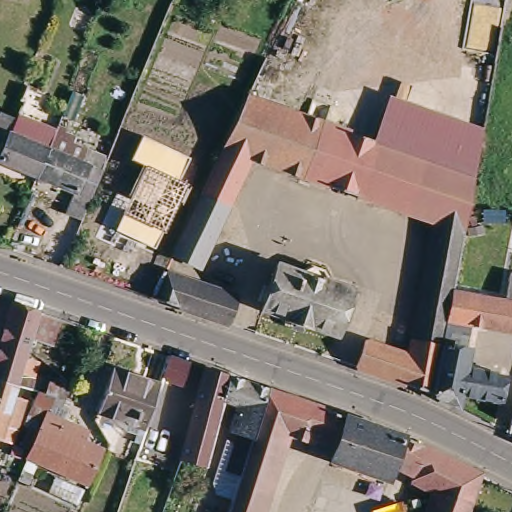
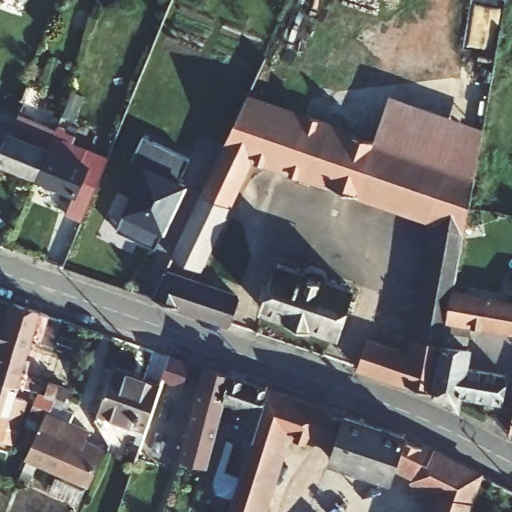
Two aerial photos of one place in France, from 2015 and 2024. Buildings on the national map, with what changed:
unchanged [(0,160),(0,115),(3,108),(15,113),(19,115),(25,100),(23,100),(30,84),(43,90),(37,106),(34,106),(27,122),(45,130),(48,125),(56,128),(37,176),(0,160)]
unchanged [(252,149),(223,139),(245,90),(378,136),(477,169),(467,223),(435,212),(252,149)]
unchanged [(484,129),(477,169),(378,136),(390,100),(484,129)]
unchanged [(56,128),(57,124),(67,128),(65,133),(75,137),(67,156),(103,172),(82,221),(65,214),(75,192),(37,176),(56,128)]
unchanged [(190,157),(180,180),(191,186),(183,204),(178,202),(165,233),(161,231),(155,247),(117,230),(143,164),(133,158),(143,136),(190,157)]
unchanged [(201,190),(223,139),(252,149),(228,202),(201,190)]
unchanged [(201,190),(228,202),(202,263),(174,251),(201,190)]
unchanged [(467,223),(455,283),(449,311),(448,318),(416,312),(435,212),(467,223)]
unchanged [(304,275),(305,272),(317,269),(322,271),(328,278),(327,283),(350,291),(335,337),(310,328),(310,331),(287,323),(287,319),(263,311),(278,266),(304,275)]
unchanged [(162,293),(152,289),(160,269),(171,273),(240,298),(231,326),(158,301),(162,293)]
unchanged [(512,297),(512,326),(449,311),(455,283),(512,297)]
unchanged [(55,342),(35,337),(25,370),(21,384),(0,377),(0,352),(15,300),(43,310),(62,316),(55,342)]
unchanged [(447,323),(457,326),(455,332),(445,330),(444,337),(433,392),(355,365),(365,338),(408,352),(416,312),(448,318),(447,323)]
unchanged [(498,393),(460,385),(458,394),(457,404),(433,392),(444,337),(468,342),(465,361),(503,369),(498,393)]
unchanged [(183,390),(177,388),(165,383),(168,373),(173,359),(192,365),(183,390)]
unchanged [(232,374),(227,397),(209,465),(183,459),(207,366),(232,374)]
unchanged [(150,429),(98,413),(112,369),(165,385),(150,429)]
unchanged [(231,450),(238,429),(231,427),(239,403),(227,397),(232,374),(271,388),(269,393),(248,456),(231,450)]
unchanged [(5,437),(0,435),(0,377),(21,384),(5,437)]
unchanged [(218,481),(227,483),(232,466),(243,470),(248,456),(269,393),(271,388),(292,395),(403,433),(405,433),(482,472),(468,512),(433,512),(440,493),(412,479),(413,475),(395,465),(390,478),(333,458),(338,443),(317,435),(316,439),(287,428),(258,512),(229,512),(230,509),(210,502),(218,481)]
unchanged [(507,416),(512,399),(512,418),(507,416)]
unchanged [(27,458),(46,418),(105,439),(87,486),(27,458)]

